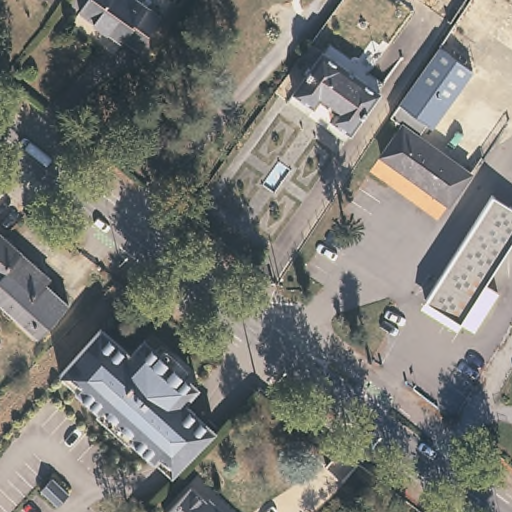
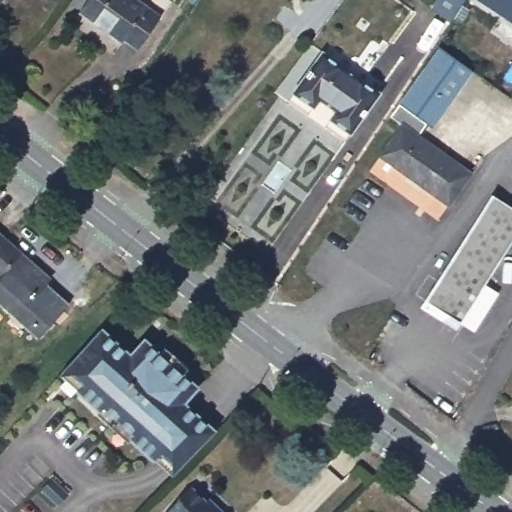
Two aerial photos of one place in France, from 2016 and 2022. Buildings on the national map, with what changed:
unchanged [(157,21),(134,51),(122,41),(119,45),(77,14),(87,0),(129,0),(130,1),(157,21)]
new [(512,0),(512,22),(479,0),(512,0)]
unchanged [(439,47),(448,53),(471,68),(432,127),(425,123),(418,133),(472,169),(452,200),(431,186),(384,153),(403,125),(392,118),(439,47)]
unchanged [(380,91),(351,134),(331,119),(337,110),(320,98),(314,107),(294,93),(323,50),(380,91)]
unchanged [(512,212),(512,243),(484,287),(497,295),(473,333),(424,302),(467,234),(489,198),(512,212)]
unchanged [(43,275),(39,279),(62,302),(30,333),(0,304),(0,234),(43,275)]
unchanged [(136,437),(107,409),(103,411),(63,373),(71,364),(104,327),(111,334),(136,357),(147,346),(185,381),(189,377),(200,388),(196,392),(185,403),(199,416),(157,461),(134,440),(136,437)]
unchanged [(199,416),(217,432),(211,438),(174,476),(157,461),(199,416)]
unchanged [(66,499),(54,512),(37,496),(49,483),(66,499)]
unchanged [(217,510),(220,507),(225,512),(167,512),(192,487),(217,510)]

